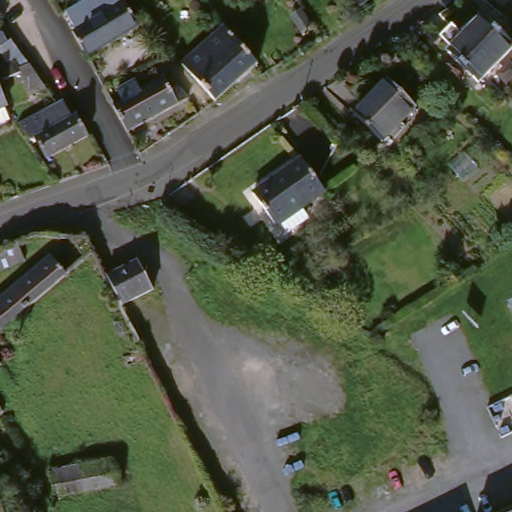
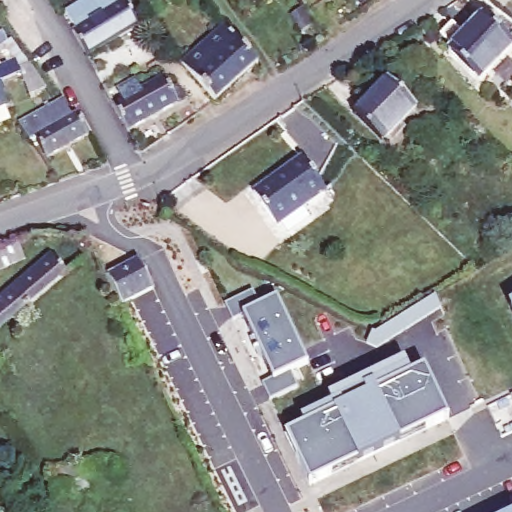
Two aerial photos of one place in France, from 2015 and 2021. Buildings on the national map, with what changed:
unchanged [(73,15),(97,0),(100,0),(109,16),(121,9),(136,34),(84,66),(69,40),(83,32),(73,15)]
unchanged [(342,18),(348,14),(352,11),(356,17),(351,20),(345,23),(342,18)]
unchanged [(146,22),(160,40),(154,45),(139,26),(146,22)]
unchanged [(512,53),(479,89),(447,60),(479,24),(512,53)]
unchanged [(257,71),(214,108),(182,69),(180,70),(172,62),(157,49),(163,42),(189,62),(223,31),(257,71)]
unchanged [(299,53),(292,57),(289,52),(297,47),(299,53)]
unchanged [(36,100),(20,107),(9,84),(0,88),(0,71),(19,62),(36,100)]
unchanged [(117,135),(106,114),(121,106),(114,95),(133,85),(139,96),(159,85),(166,96),(174,91),(183,105),(120,140),(117,135)]
unchanged [(410,115),(374,151),(345,123),(382,87),(410,115)]
unchanged [(87,144),(45,168),(35,150),(29,153),(16,132),(58,107),(69,125),(73,122),(87,144)]
unchanged [(273,236),(249,204),(295,170),(319,202),(273,236)]
unchanged [(92,241),(99,257),(89,266),(77,240),(92,241)]
unchanged [(51,266),(67,285),(39,308),(35,311),(0,339),(0,307),(22,289),(51,266)]
unchanged [(133,267),(146,295),(144,296),(116,310),(102,281),(133,267)]
new [(253,293),(262,307),(278,300),(307,363),(290,372),(298,389),(270,402),(263,383),(273,377),(244,319),(234,326),(225,306),(253,293)]
unchanged [(506,305),(512,302),(512,318),(506,305)]
new [(383,340),(387,341),(443,303),(449,316),(386,358),(376,353),(383,340)]
new [(305,426),(302,419),(331,406),(328,398),(406,361),(413,375),(425,368),(447,416),(399,439),(357,462),(310,482),(287,436),(305,426)]
unchanged [(511,397),(512,397),(512,401),(511,397)]
unchanged [(109,493),(49,498),(47,472),(108,467),(109,493)]

